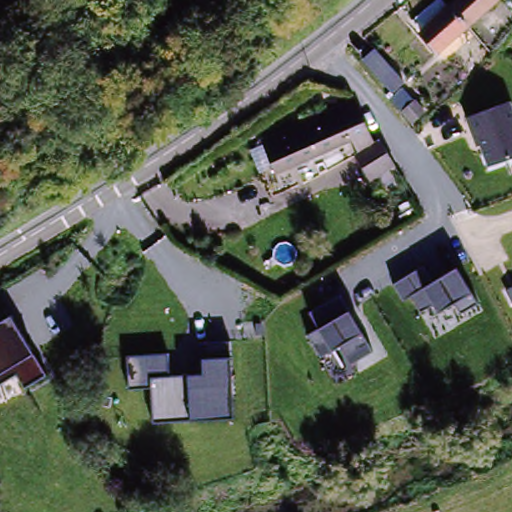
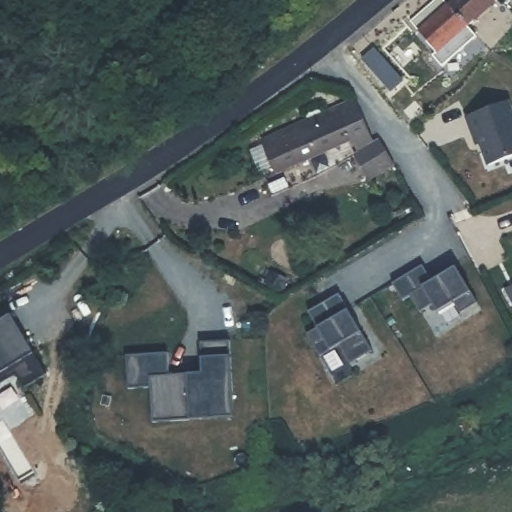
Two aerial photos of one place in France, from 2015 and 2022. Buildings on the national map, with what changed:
unchanged [(452,11),(464,0),(501,0),(499,2),(468,29),(439,56),(422,37),(416,30),(446,4),(452,11)]
unchanged [(404,74),(393,84),(366,56),(378,46),(404,74)]
unchanged [(414,94),(425,108),(419,113),(414,109),(407,101),(414,94)]
unchanged [(373,141),(378,137),(382,145),(388,154),(393,162),(369,177),(368,174),(354,152),(358,150),(352,137),(276,172),(262,142),(353,100),(373,141)]
unchanged [(481,144),(476,146),(466,118),(511,101),(512,106),(512,157),(487,165),(481,144)]
unchanged [(423,266),(434,281),(457,267),(472,293),(478,302),(462,312),(457,302),(438,313),(434,304),(420,313),(411,297),(403,302),(393,285),(423,266)]
unchanged [(349,311),(361,332),(373,350),(351,363),(339,344),(330,350),(320,356),(308,334),(319,328),(309,313),(340,295),(349,311)]
unchanged [(32,353),(34,352),(47,374),(24,388),(15,374),(0,384),(0,322),(11,315),(32,353)]
unchanged [(168,355),(168,376),(188,374),(203,372),(202,357),(201,343),(229,341),(231,356),(233,417),(191,419),(153,422),(151,386),(129,388),(126,356),(168,355)]

